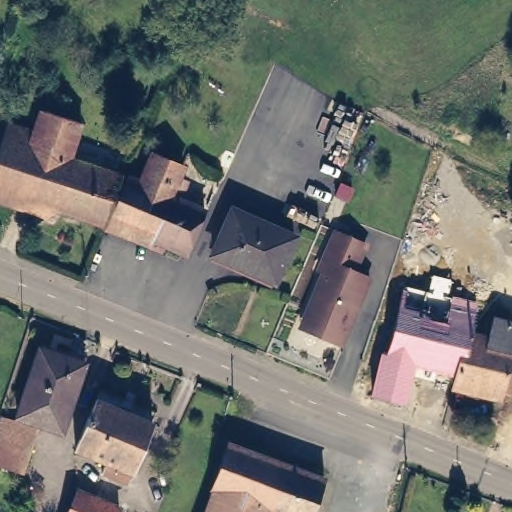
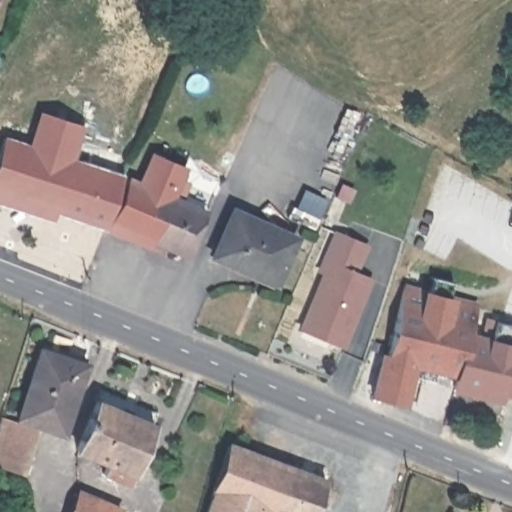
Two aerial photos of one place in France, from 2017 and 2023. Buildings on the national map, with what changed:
unchanged [(39,118),(77,132),(65,164),(27,151),(39,118)]
unchanged [(93,173),(97,164),(107,168),(105,177),(117,182),(102,228),(0,194),(0,158),(5,143),(27,151),(65,164),(93,173)]
unchanged [(124,237),(107,230),(127,179),(138,183),(150,153),(182,166),(177,179),(184,182),(182,188),(177,198),(189,203),(205,209),(187,255),(127,231),(124,237)]
unchanged [(301,239),(284,284),(225,261),(242,216),(301,239)]
unchanged [(311,320),(328,274),(324,273),(334,245),(337,235),(369,245),(365,255),(359,271),(374,278),(361,312),(357,311),(351,326),(354,332),(349,345),(335,340),(307,329),(311,320)]
unchanged [(387,365),(390,366),(405,295),(480,318),(474,338),(472,347),(484,350),(490,329),(512,336),(512,376),(512,406),(505,404),(502,410),(456,397),(459,387),(417,375),(405,415),(377,408),(384,378),(387,365)]
unchanged [(42,351),(85,367),(59,438),(15,422),(42,351)]
unchanged [(99,484),(104,471),(75,458),(100,399),(152,422),(123,493),(99,484)]
unchanged [(0,432),(4,423),(39,436),(23,479),(0,470),(0,432)]
unchanged [(214,503),(212,502),(234,447),(328,484),(317,512),(238,512),(214,503)]
unchanged [(82,493),(122,510),(122,512),(75,512),(82,493)]
unchanged [(214,503),(238,512),(210,512),(214,503)]

